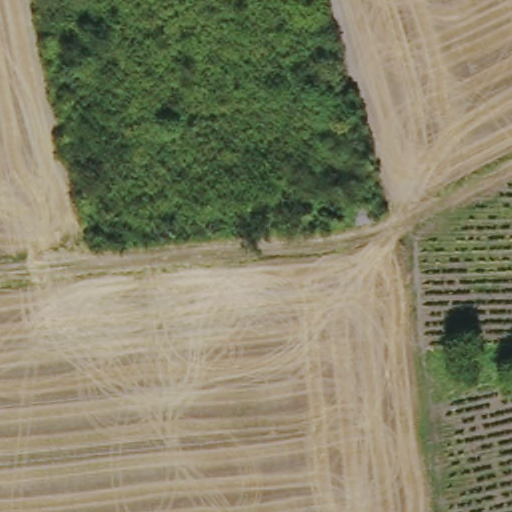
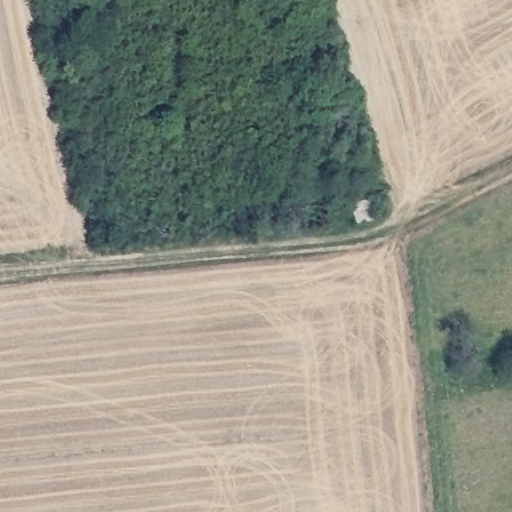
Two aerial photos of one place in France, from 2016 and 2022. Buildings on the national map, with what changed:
unchanged [(371,201),(377,222),(357,227),(353,207),(371,201)]

